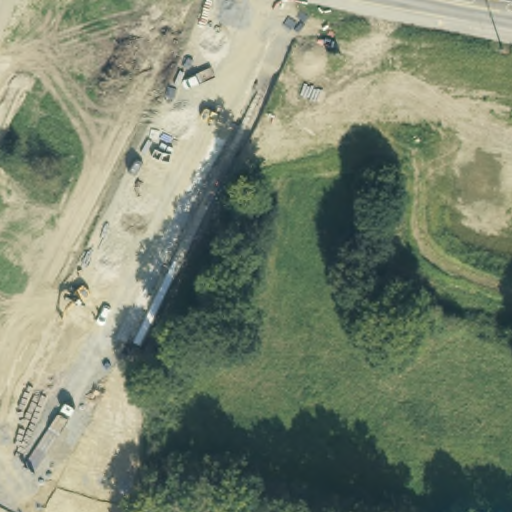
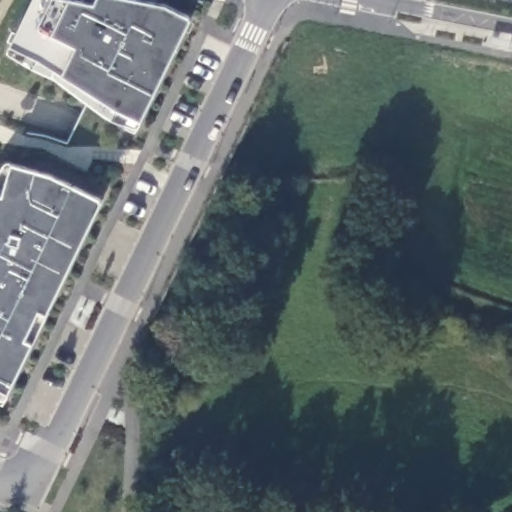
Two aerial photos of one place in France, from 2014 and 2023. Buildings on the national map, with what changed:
new [(163,4),(189,18),(139,119),(134,125),(112,119),(83,97),(54,75),(8,52),(11,45),(33,0),(86,0),(95,1),(96,0),(143,0),(163,4)]
demolished [(431,79),(423,115),(365,100),(363,106),(343,100),(351,57),(431,79)]
demolished [(478,97),(466,137),(436,130),(445,90),(478,97)]
new [(46,311),(31,342),(8,391),(5,397),(0,398),(0,167),(3,162),(11,165),(51,174),(100,199),(46,311)]

